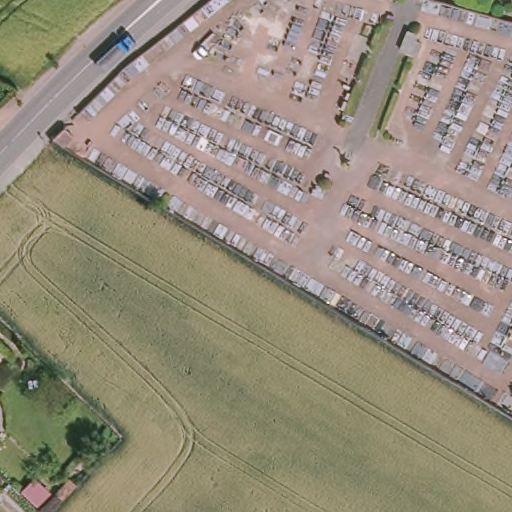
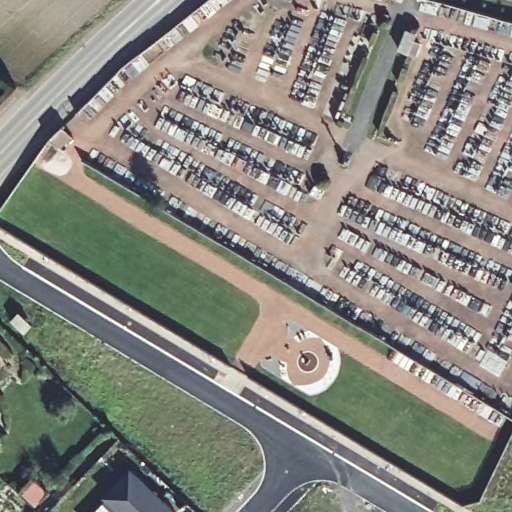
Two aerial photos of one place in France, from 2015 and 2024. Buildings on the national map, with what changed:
unchanged [(61,127),(70,136),(65,142),(60,148),(47,141),(61,127)]
new [(132,466),(179,512),(119,512),(103,496),(132,466)]

